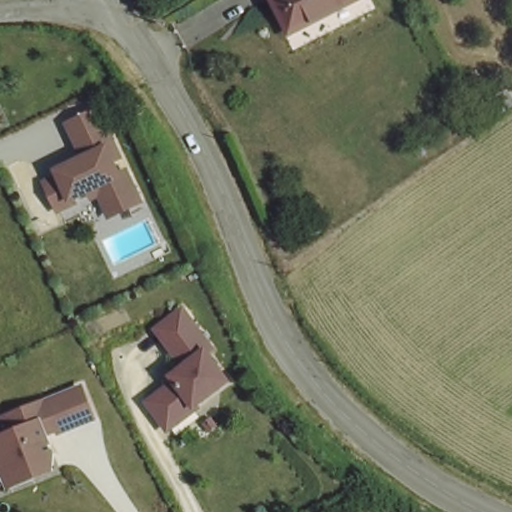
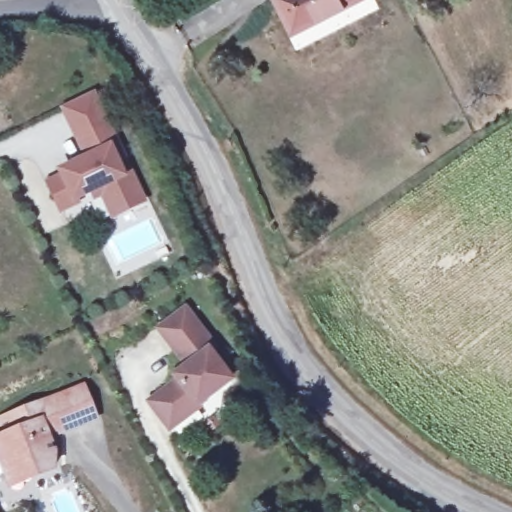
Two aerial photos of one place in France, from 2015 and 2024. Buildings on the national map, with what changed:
unchanged [(279,0),(355,0),(299,34),(279,0)]
unchanged [(102,161),(113,187),(121,184),(134,214),(110,224),(98,195),(66,209),(68,214),(53,220),(41,191),(55,186),(52,181),(68,174),(71,179),(82,174),(72,151),(65,135),(94,122),(102,139),(109,157),(102,161)]
unchanged [(148,399),(178,378),(174,373),(187,364),(159,326),(185,307),(213,346),(208,350),(228,379),(195,402),(196,405),(168,425),(165,421),(148,399)]
unchanged [(3,470),(0,463),(0,433),(3,431),(0,424),(0,415),(65,388),(80,382),(93,413),(77,420),(57,428),(55,425),(43,430),(51,448),(45,450),(50,465),(31,472),(8,481),(3,470)]

